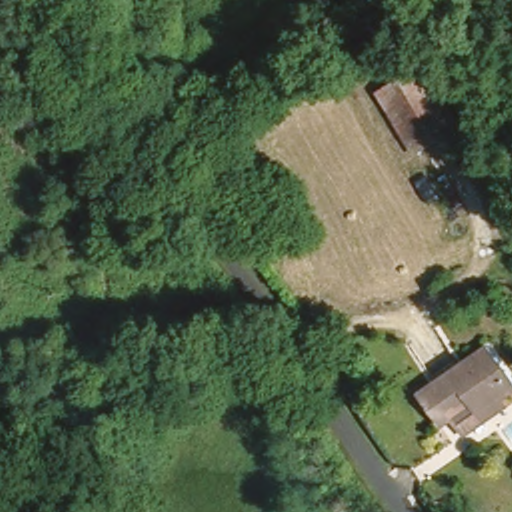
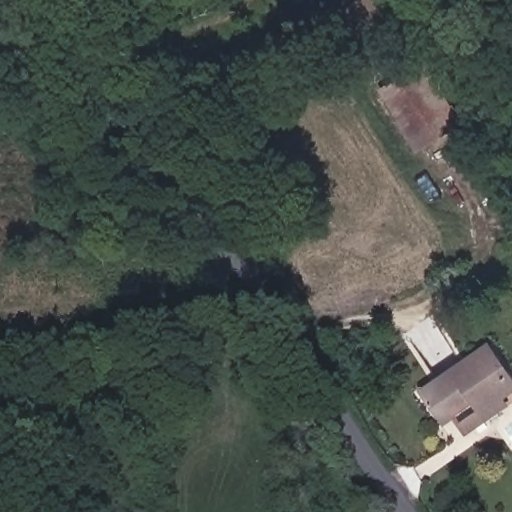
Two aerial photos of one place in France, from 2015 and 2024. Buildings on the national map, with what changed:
unchanged [(405,137),(376,91),(420,59),(451,109),(405,137)]
unchanged [(477,415),(458,426),(448,411),(435,418),(415,386),(491,343),(512,375),(512,386),(500,393),(504,400),(477,415)]

